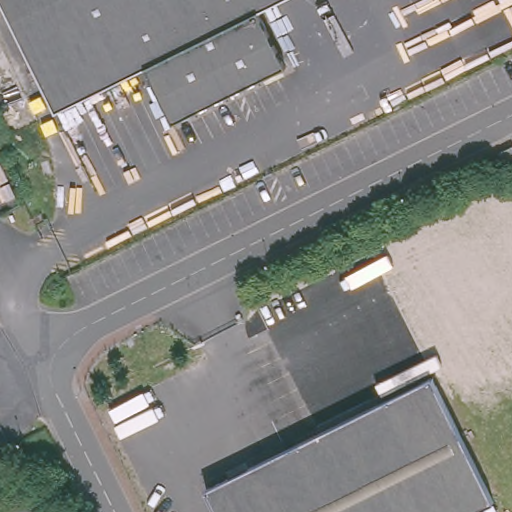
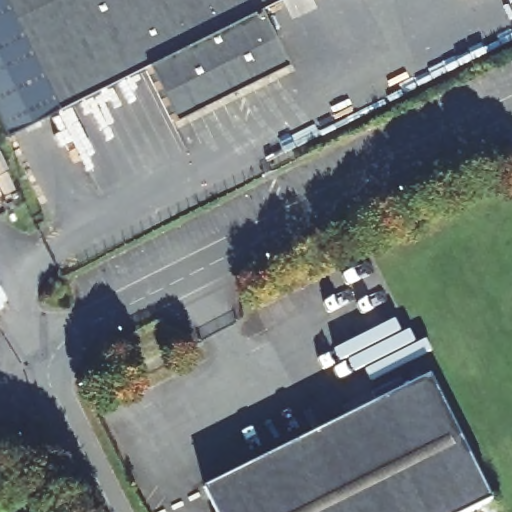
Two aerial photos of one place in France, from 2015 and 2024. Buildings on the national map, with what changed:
unchanged [(283,66),(170,120),(142,66),(52,111),(0,5),(0,0),(278,0),(256,11),(283,66)]
new [(0,129),(0,5),(52,111),(3,135),(0,129)]
unchanged [(507,150),(510,157),(498,164),(495,159),(493,156),(507,150)]
unchanged [(489,502),(468,512),(216,512),(205,488),(426,377),(489,502)]

